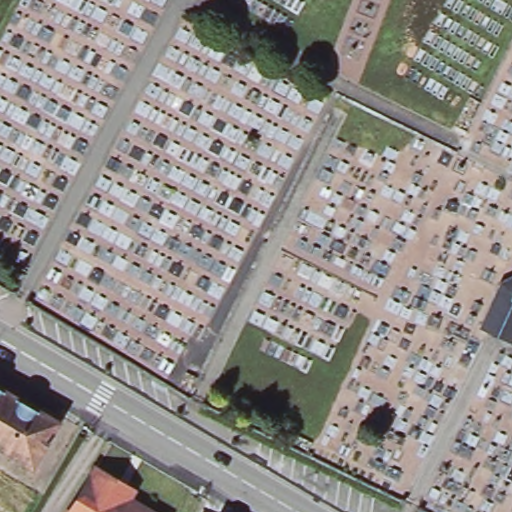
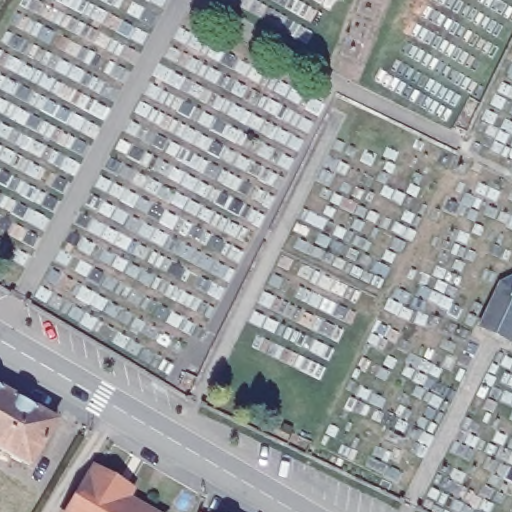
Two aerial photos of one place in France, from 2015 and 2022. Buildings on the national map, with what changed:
unchanged [(512,278),(512,338),(511,341),(480,325),(501,283),(512,278)]
unchanged [(30,465),(0,447),(0,388),(56,421),(30,465)]
unchanged [(129,491),(125,500),(147,512),(70,512),(92,471),(116,484),(129,491)]

